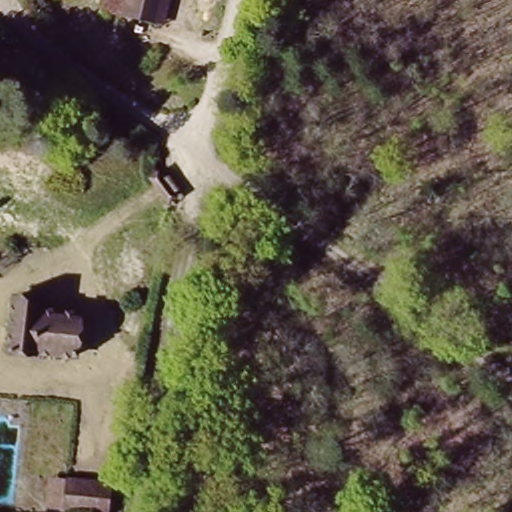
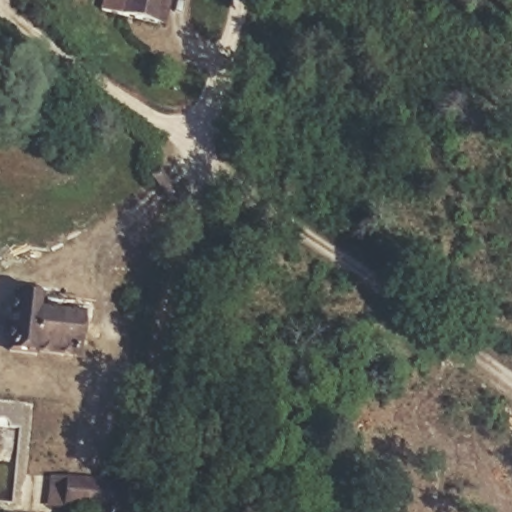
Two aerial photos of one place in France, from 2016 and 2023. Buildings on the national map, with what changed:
unchanged [(120,15),(123,0),(168,0),(164,23),(120,15)]
unchanged [(89,318),(82,365),(7,351),(15,291),(52,295),(50,311),(89,318)]
unchanged [(107,475),(104,511),(63,507),(50,506),(52,469),(107,475)]

